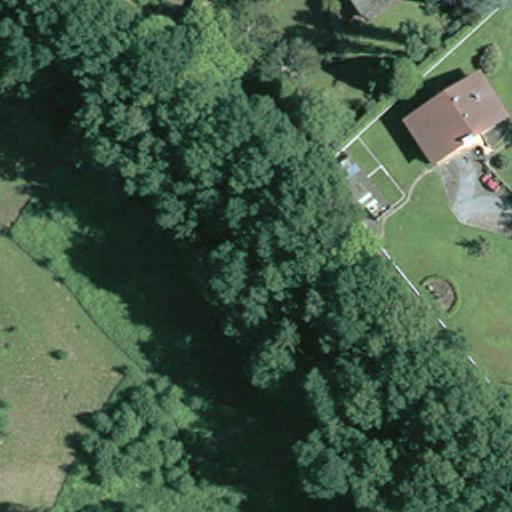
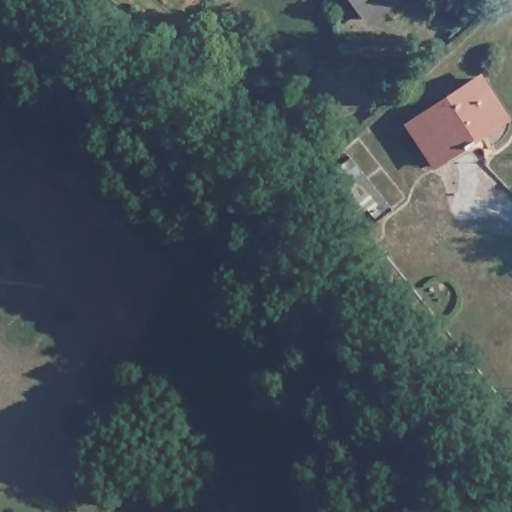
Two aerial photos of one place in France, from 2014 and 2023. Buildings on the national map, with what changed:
unchanged [(369,20),(355,0),(395,0),(369,20)]
unchanged [(471,139),(474,143),(439,166),(411,125),(480,80),(504,117),(471,139)]

